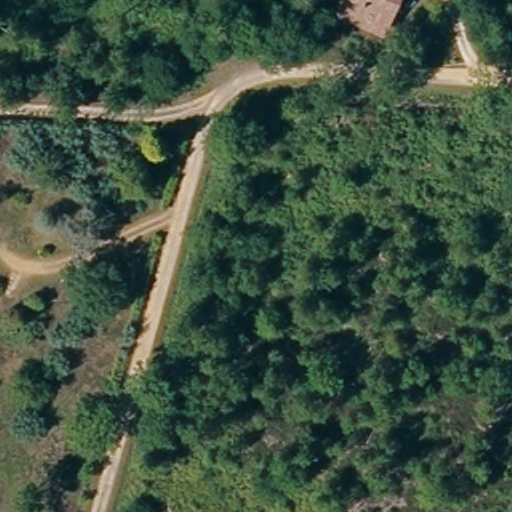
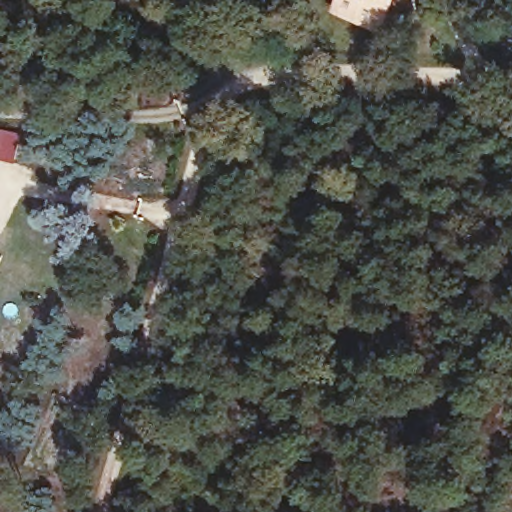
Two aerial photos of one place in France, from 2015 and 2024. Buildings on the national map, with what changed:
unchanged [(380,33),(371,29),(334,10),(339,0),(395,0),(380,33)]

